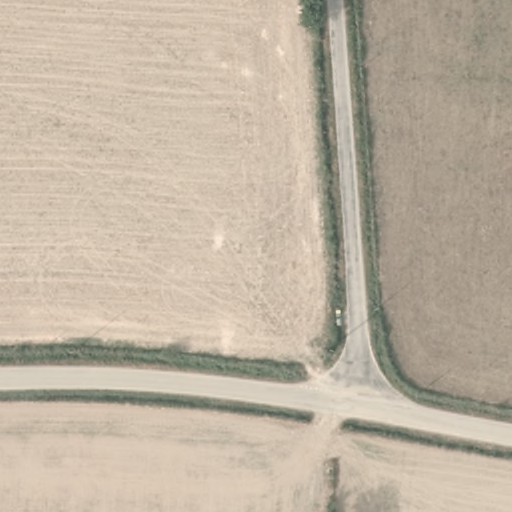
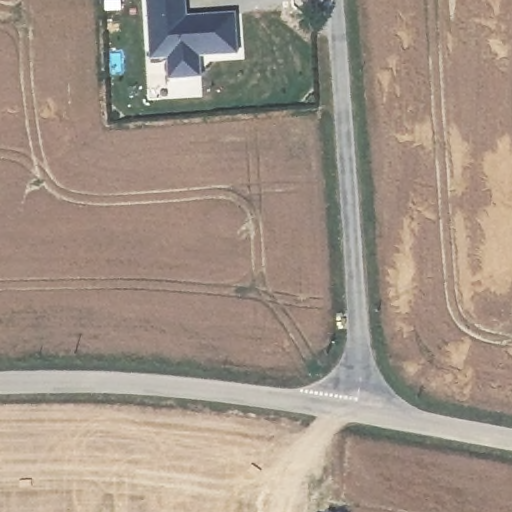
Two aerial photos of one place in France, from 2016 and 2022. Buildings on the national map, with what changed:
new [(201,76),(166,78),(167,58),(150,59),(147,0),(186,0),(187,15),(235,12),(237,53),(200,55),(201,76)]

